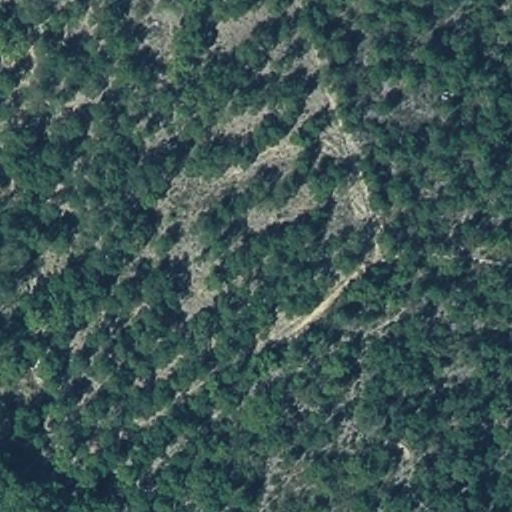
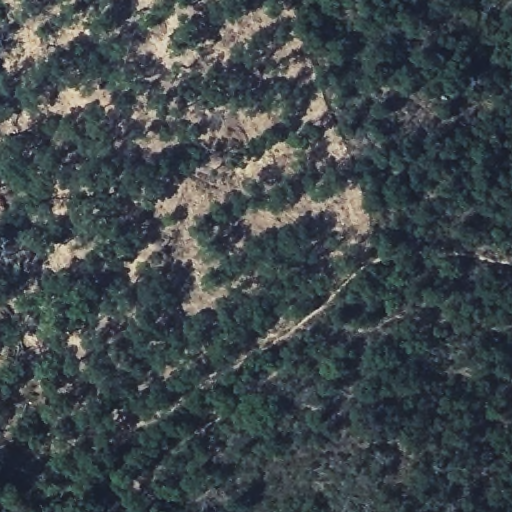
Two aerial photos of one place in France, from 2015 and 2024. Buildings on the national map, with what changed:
[]

